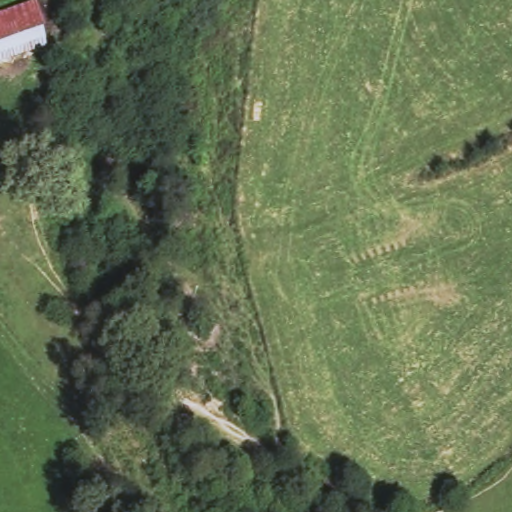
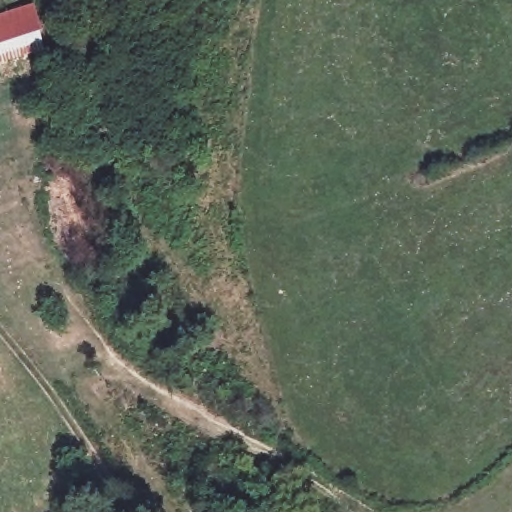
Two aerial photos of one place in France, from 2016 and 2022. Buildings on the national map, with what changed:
unchanged [(47,46),(0,58),(0,13),(32,4),(47,46)]

